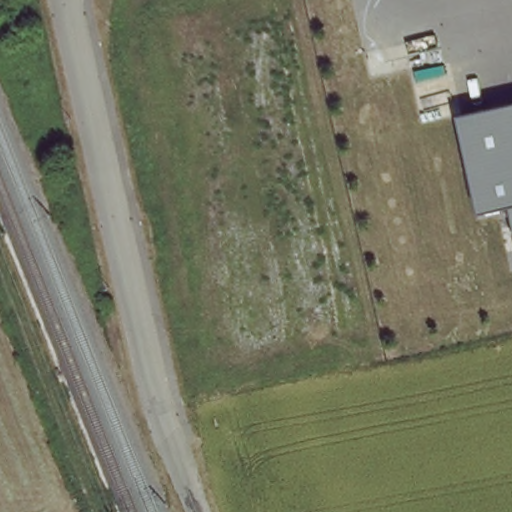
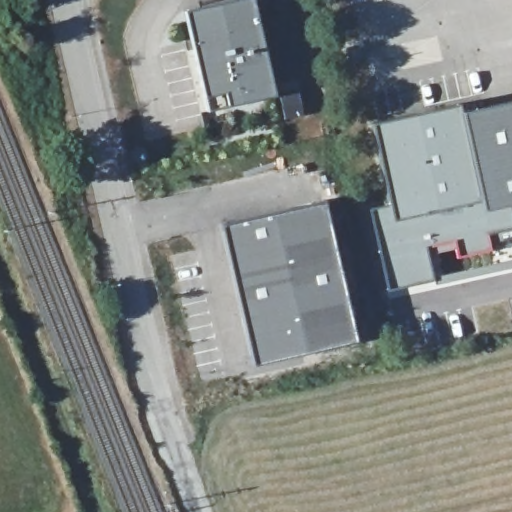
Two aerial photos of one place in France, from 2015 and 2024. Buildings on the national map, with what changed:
new [(246,0),(267,93),(199,108),(176,7),(207,0),(246,0)]
unchanged [(485,211),(462,112),(512,101),(512,209),(511,205),(485,211)]
new [(455,248),(426,254),(431,280),(388,290),(370,209),(390,204),(372,124),(459,104),(462,112),(485,211),(511,205),(512,209),(512,239),(488,243),(490,251),(457,258),(455,248)]
new [(325,216),(355,356),(248,380),(221,239),(325,216)]
new [(480,283),(512,275),(512,321),(489,326),(480,283)]

